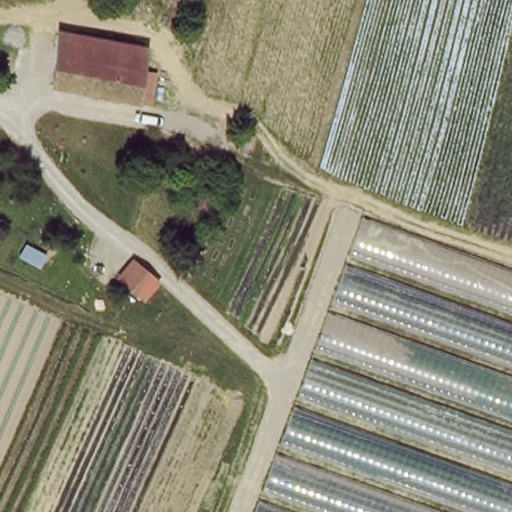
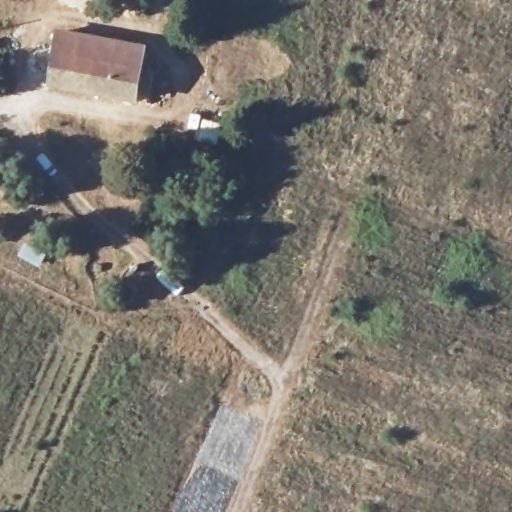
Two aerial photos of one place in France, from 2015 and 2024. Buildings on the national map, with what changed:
unchanged [(45,86),(60,31),(77,35),(63,91),(45,86)]
unchanged [(153,53),(148,75),(164,79),(156,113),(63,91),(77,35),(153,53)]
demolished [(255,512),(361,220),(512,274),(512,512),(255,512)]
demolished [(143,303),(111,281),(131,257),(160,280),(143,303)]

